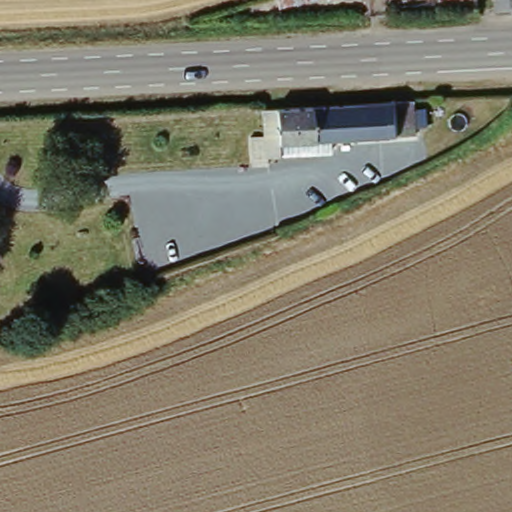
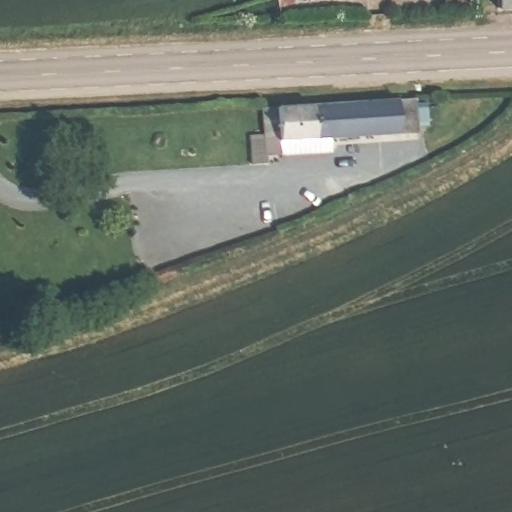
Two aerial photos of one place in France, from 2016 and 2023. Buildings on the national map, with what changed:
unchanged [(281,15),(276,0),(334,0),(281,15)]
unchanged [(442,0),(480,0),(480,3),(442,5),(442,0)]
unchanged [(512,17),(495,18),(496,0),(512,0),(512,17)]
unchanged [(426,138),(314,144),(314,158),(283,159),(276,160),(250,162),(250,138),(263,137),(263,113),(280,112),(426,105),(426,138)]

